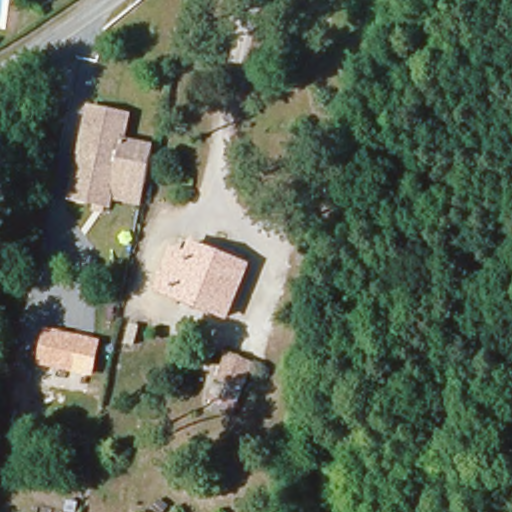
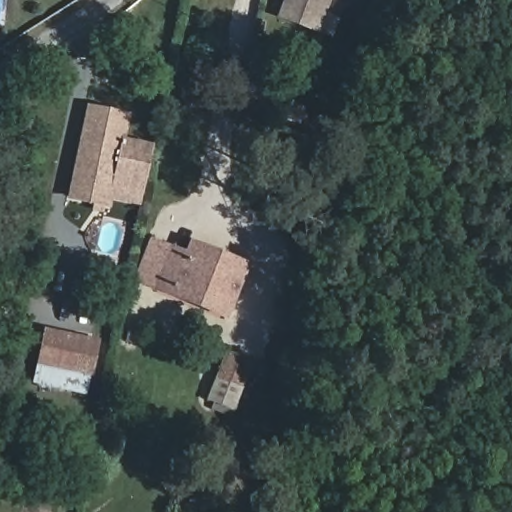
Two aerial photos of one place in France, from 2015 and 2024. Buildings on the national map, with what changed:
new [(276,18),(283,0),(331,0),(317,34),(276,18)]
unchanged [(132,109),(126,137),(156,142),(142,212),(69,199),(86,102),(132,109)]
unchanged [(152,293),(165,249),(184,255),(187,242),(207,249),(227,256),(244,263),(225,319),(203,311),(184,304),(152,293)]
unchanged [(92,378),(31,366),(39,327),(100,339),(92,378)]
unchanged [(239,398),(214,390),(224,355),(250,363),(239,398)]

